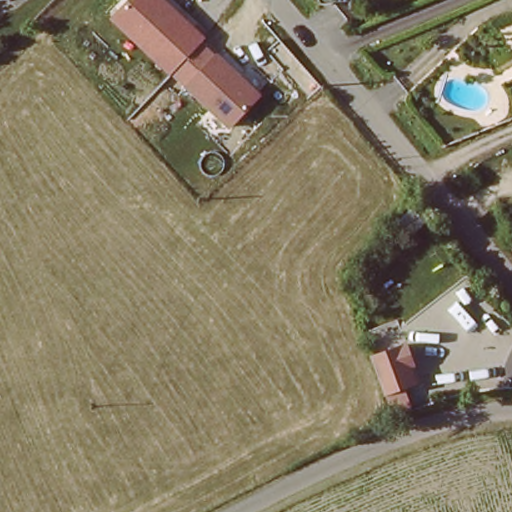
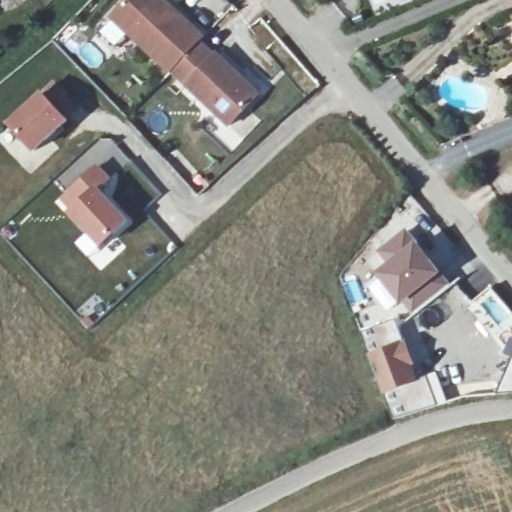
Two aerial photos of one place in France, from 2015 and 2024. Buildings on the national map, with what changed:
unchanged [(109,19),(126,0),(168,0),(206,36),(170,75),(109,19)]
unchanged [(262,96),(229,128),(185,87),(217,54),(262,96)]
new [(41,93),(54,81),(80,108),(68,121),(34,154),(8,125),(41,93)]
new [(111,180),(100,189),(130,222),(101,248),(69,213),(77,204),(67,193),(97,165),(111,180)]
new [(387,266),(376,253),(405,227),(452,285),(410,318),(375,277),(387,266)]
new [(490,285),(512,312),(512,338),(501,333),(472,301),(490,285)]
new [(500,386),(512,356),(512,392),(499,393),(500,386)]
unchanged [(417,375),(428,401),(393,414),(385,394),(417,375)]

